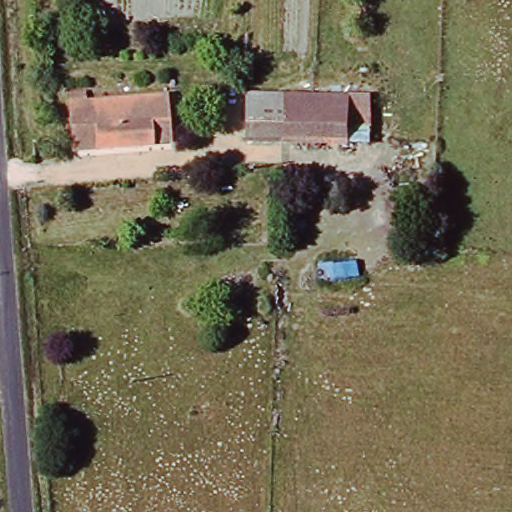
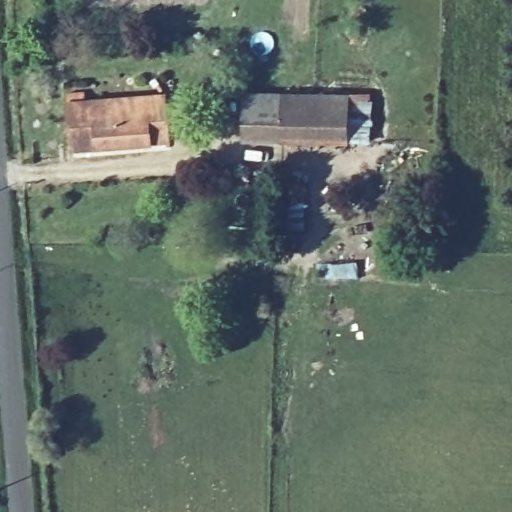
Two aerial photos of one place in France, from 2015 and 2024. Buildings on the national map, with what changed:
unchanged [(91,102),(169,98),(173,149),(71,152),(68,90),(90,90),(91,102)]
unchanged [(270,99),(321,100),(318,144),(253,141),(253,115),(270,99)]
unchanged [(371,100),(370,146),(318,144),(321,100),(371,100)]

